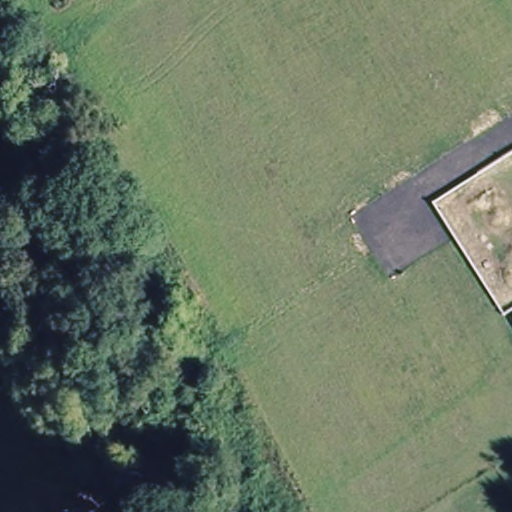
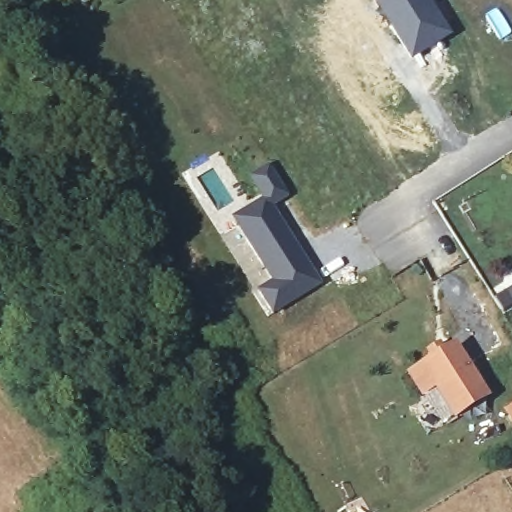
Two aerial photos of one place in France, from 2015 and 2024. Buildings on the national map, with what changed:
new [(411,60),(372,0),(431,0),(452,34),(411,60)]
new [(250,179),(268,165),(289,195),(272,207),(288,227),(322,283),(271,315),(255,290),(271,281),(231,217),(262,197),(250,179)]
unchanged [(427,356),(439,349),(443,356),(453,350),(486,401),(454,421),(435,390),(422,398),(409,378),(432,363),(427,356)]

